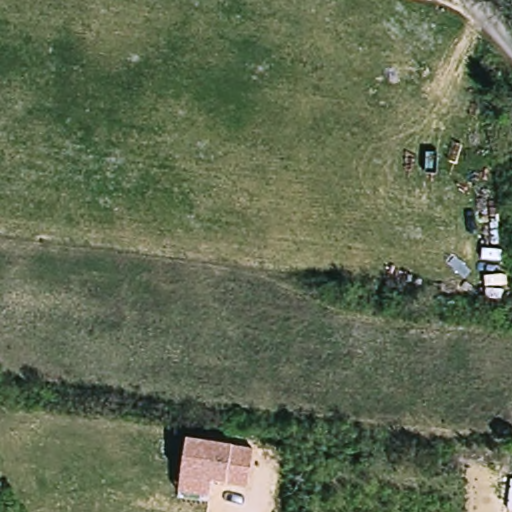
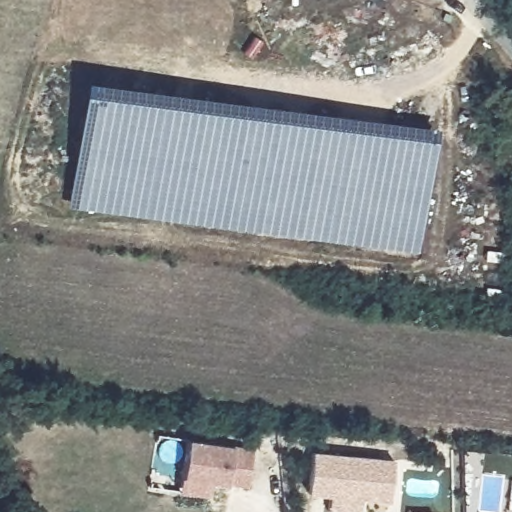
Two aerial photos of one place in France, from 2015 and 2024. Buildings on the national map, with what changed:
new [(83,79),(438,128),(420,254),(66,205),(83,79)]
unchanged [(187,438),(232,446),(252,449),(247,486),(227,483),(211,481),(210,496),(180,492),(187,438)]
new [(328,512),(328,495),(307,493),(311,450),(394,460),(388,503),(360,499),(359,512),(328,512)]
unchanged [(510,508),(512,480),(512,509),(510,508)]

